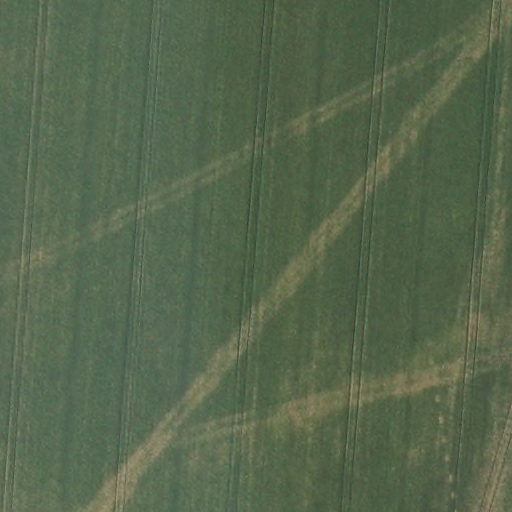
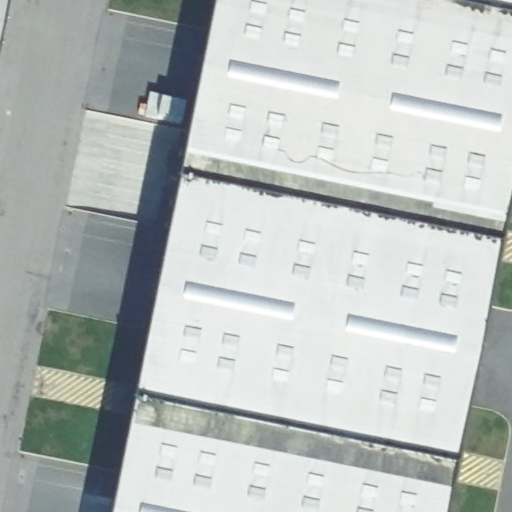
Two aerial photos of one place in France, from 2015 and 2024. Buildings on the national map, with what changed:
new [(447,512),(114,512),(218,0),(512,0),(512,185),(447,512)]

